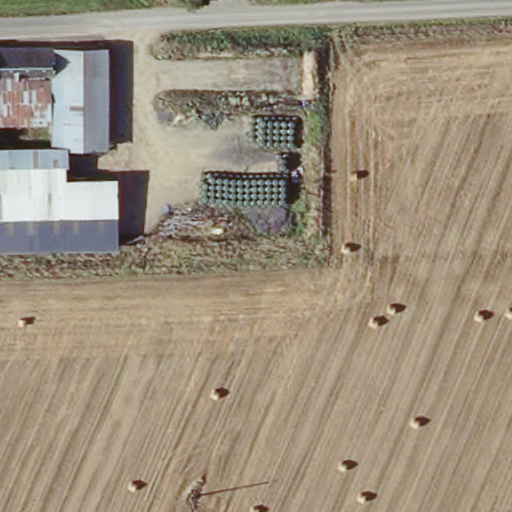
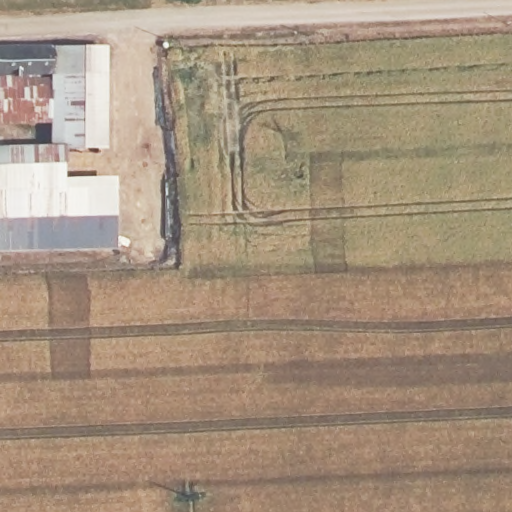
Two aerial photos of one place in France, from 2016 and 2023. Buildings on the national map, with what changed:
unchanged [(54,47),(54,83),(0,83),(0,48),(33,47),(54,47)]
unchanged [(109,48),(109,82),(54,83),(54,47),(109,48)]
unchanged [(109,82),(109,149),(53,151),(52,122),(0,123),(0,83),(54,83),(109,82)]
unchanged [(67,179),(119,179),(120,217),(0,219),(0,166),(66,165),(67,179)]
unchanged [(119,243),(0,245),(0,219),(120,217),(119,243)]

